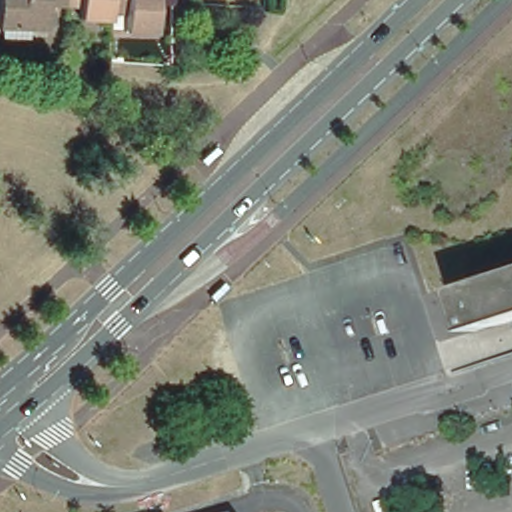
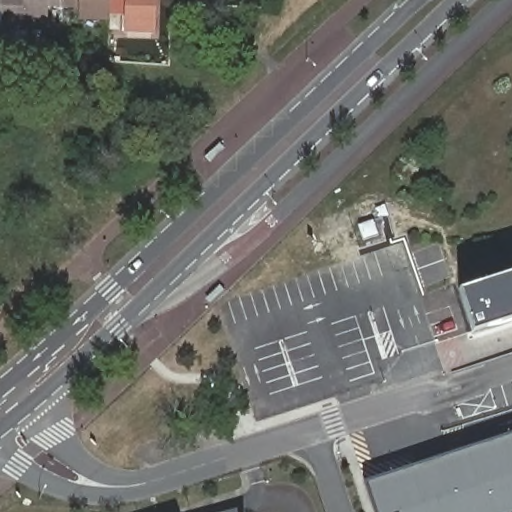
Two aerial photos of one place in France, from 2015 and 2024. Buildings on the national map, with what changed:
unchanged [(43,35),(0,34),(0,0),(59,0),(59,12),(44,11),(43,35)]
unchanged [(105,18),(104,25),(73,24),(72,12),(59,12),(59,0),(105,0),(105,18)]
unchanged [(150,38),(117,37),(118,19),(105,18),(105,0),(151,0),(150,38)]
unchanged [(452,282),(512,262),(512,309),(463,325),(452,282)]
new [(512,512),(366,512),(356,486),(512,434),(512,512)]

